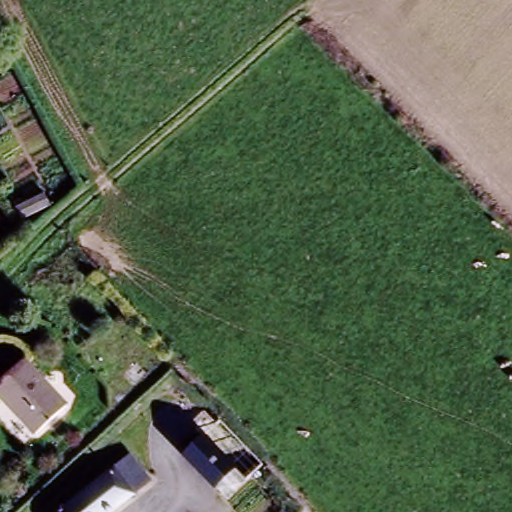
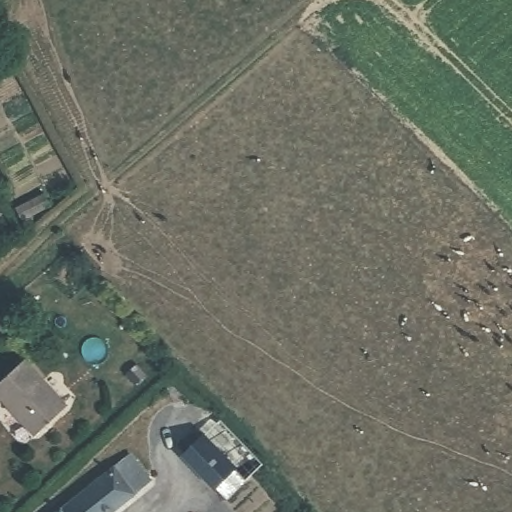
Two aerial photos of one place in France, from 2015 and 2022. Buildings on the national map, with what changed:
unchanged [(0,384),(25,362),(66,410),(36,436),(0,393),(0,384)]
unchanged [(179,462),(205,440),(233,472),(209,493),(179,462)]
unchanged [(139,490),(112,512),(65,512),(120,467),(139,490)]

